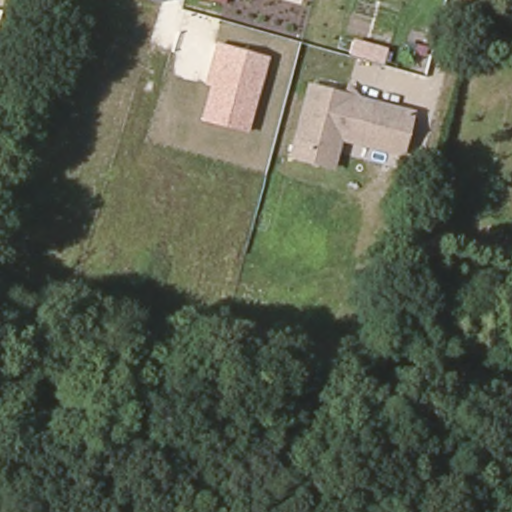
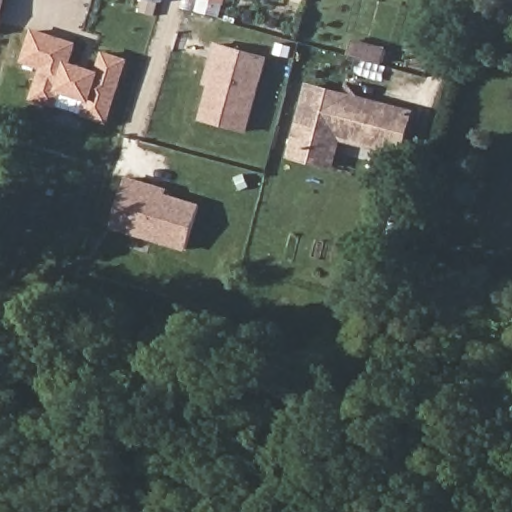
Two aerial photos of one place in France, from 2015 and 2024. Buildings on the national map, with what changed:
new [(0,31),(0,0),(7,0),(0,31)]
unchanged [(161,3),(148,0),(162,0),(161,3)]
new [(226,3),(222,18),(199,11),(203,0),(227,0),(226,3)]
new [(78,43),(72,63),(98,71),(104,51),(129,59),(108,125),(31,101),(41,69),(21,63),(33,29),(78,43)]
unchanged [(205,84),(216,42),(268,56),(248,132),(201,120),(209,86),(205,84)]
unchanged [(306,157),(292,153),(311,84),(413,112),(402,153),(341,136),(333,164),(306,157)]
new [(187,252),(111,229),(127,176),(169,188),(167,194),(201,204),(187,252)]

